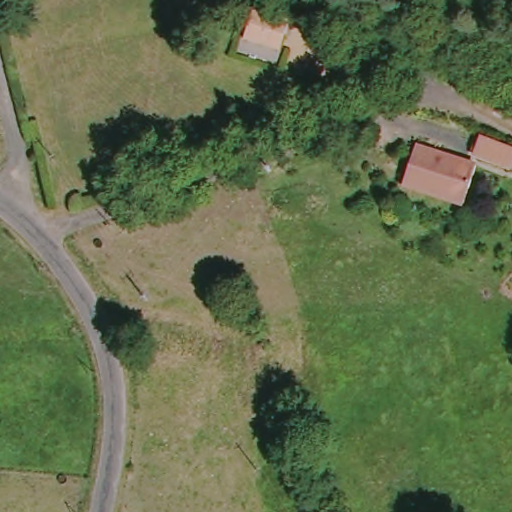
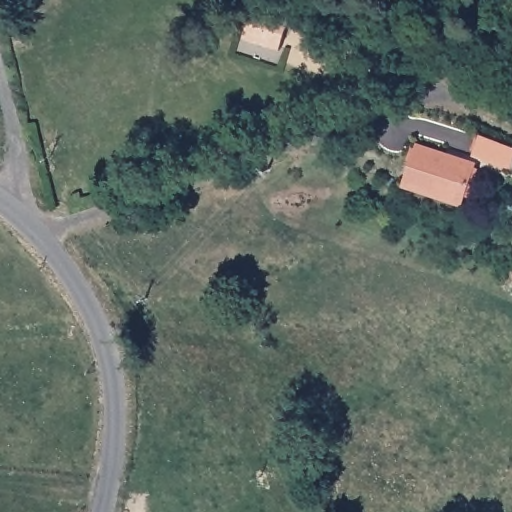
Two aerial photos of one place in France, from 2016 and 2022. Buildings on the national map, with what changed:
unchanged [(286,23),(270,51),(233,35),(244,13),(248,6),(258,10),(286,23)]
unchanged [(512,152),(512,167),(508,176),(471,161),(482,139),(512,152)]
unchanged [(456,208),(399,187),(413,145),(471,165),(456,208)]

